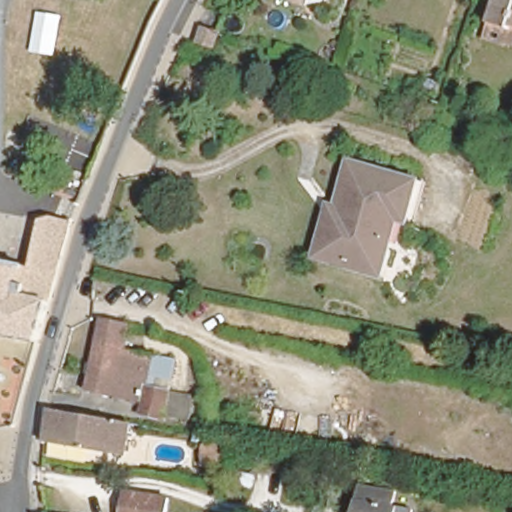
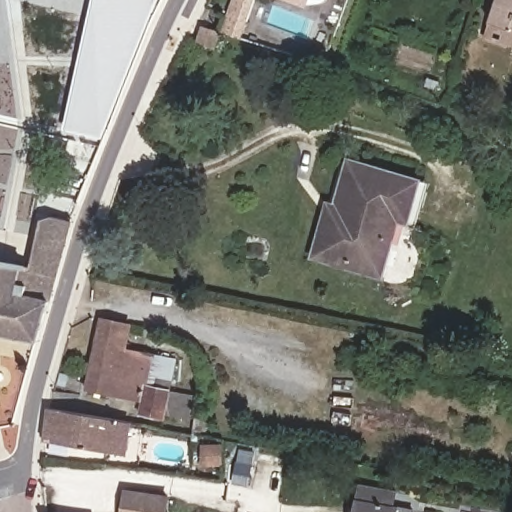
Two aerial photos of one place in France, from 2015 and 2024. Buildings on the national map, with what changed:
new [(101,140),(62,136),(92,0),(154,0),(101,140)]
unchanged [(305,10),(276,0),(308,0),(305,10)]
unchanged [(502,33),(500,37),(481,31),(491,0),(512,0),(512,36),(502,33)]
unchanged [(201,49),(207,32),(214,20),(224,24),(221,37),(217,54),(201,49)]
unchanged [(230,38),(234,29),(245,33),(243,42),(230,38)]
unchanged [(346,220),(351,204),(347,203),(359,161),(429,182),(419,220),(395,214),(390,232),(346,220)]
unchanged [(389,236),(398,238),(388,272),(330,255),(337,223),(345,225),(346,220),(390,232),(389,236)]
unchanged [(0,341),(0,266),(28,271),(36,226),(46,221),(65,226),(34,346),(0,341)]
unchanged [(125,327),(121,348),(170,359),(165,381),(150,377),(147,387),(164,392),(158,421),(134,415),(135,402),(81,390),(95,321),(125,327)]
unchanged [(129,425),(124,457),(44,442),(43,442),(49,408),(129,425)]
unchanged [(191,442),(192,435),(195,420),(207,423),(205,432),(199,431),(198,436),(197,442),(191,442)]
unchanged [(208,456),(209,451),(202,450),(205,437),(224,441),(223,458),(208,456)]
unchanged [(387,510),(392,512),(349,512),(354,488),(390,496),(387,510)]
unchanged [(143,491),(162,493),(159,512),(118,512),(120,491),(143,494),(143,491)]

